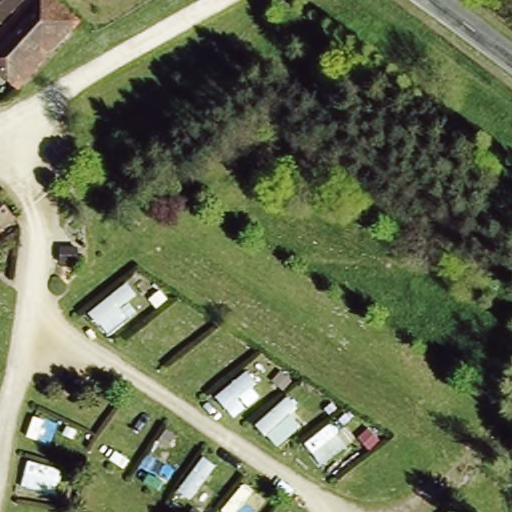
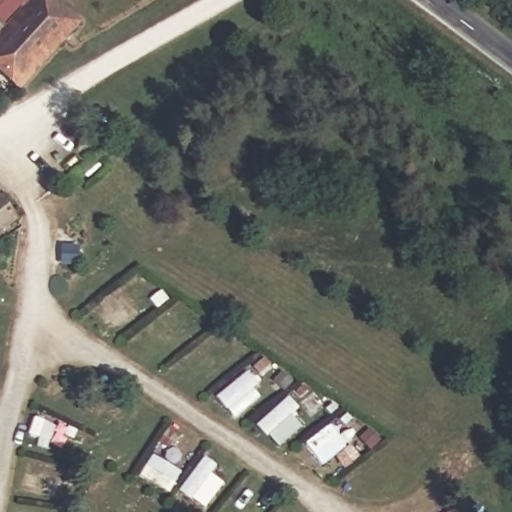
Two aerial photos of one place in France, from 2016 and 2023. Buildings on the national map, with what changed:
unchanged [(81,11),(21,79),(0,64),(0,27),(5,21),(0,17),(0,0),(68,0),(81,11)]
unchanged [(11,205),(0,217),(0,190),(11,205)]
unchanged [(0,233),(0,228),(2,231),(0,233)]

